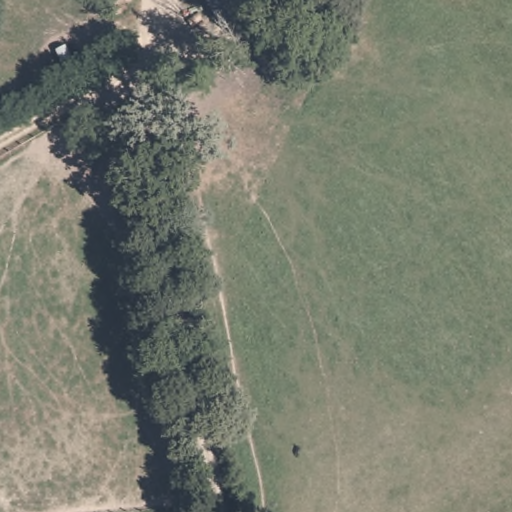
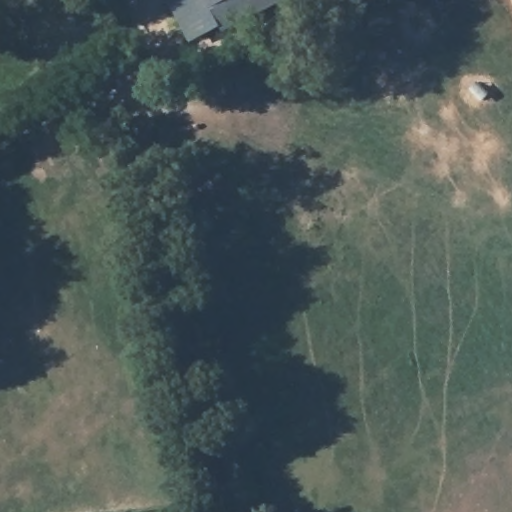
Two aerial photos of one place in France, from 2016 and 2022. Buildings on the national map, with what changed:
new [(190,40),(169,0),(270,0),(223,25),(190,40)]
demolished [(215,14),(213,8),(228,0),(283,0),(225,32),(215,14)]

